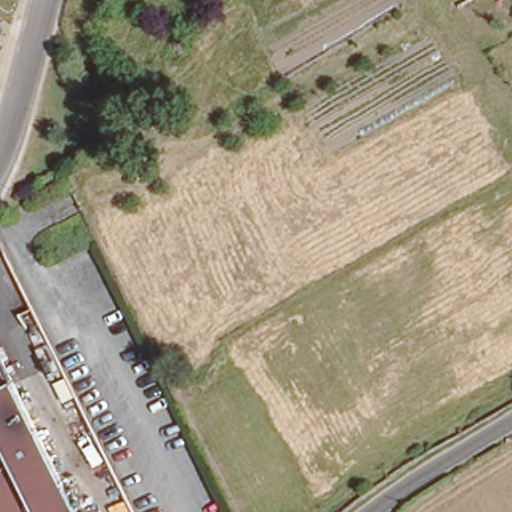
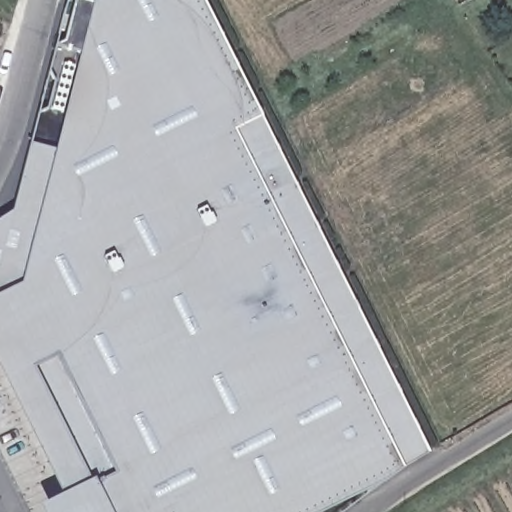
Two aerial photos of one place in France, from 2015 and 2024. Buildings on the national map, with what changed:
new [(35,506),(60,492),(5,389),(0,378),(0,219),(12,212),(67,0),(202,0),(260,116),(428,452),(402,467),(317,512),(39,512),(35,506)]
demolished [(477,39),(458,0),(512,0),(512,18),(477,39)]
demolished [(76,512),(0,512),(0,384),(12,378),(76,512)]

